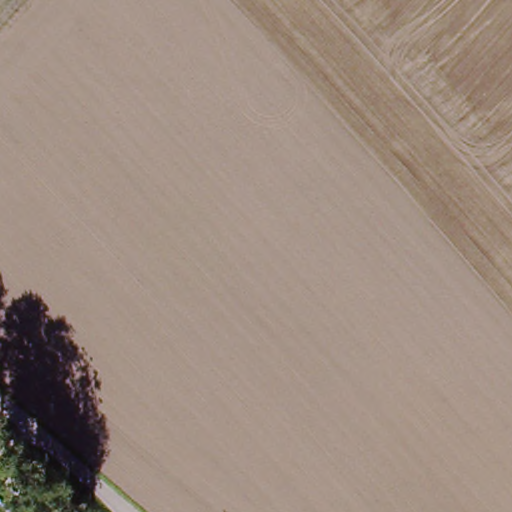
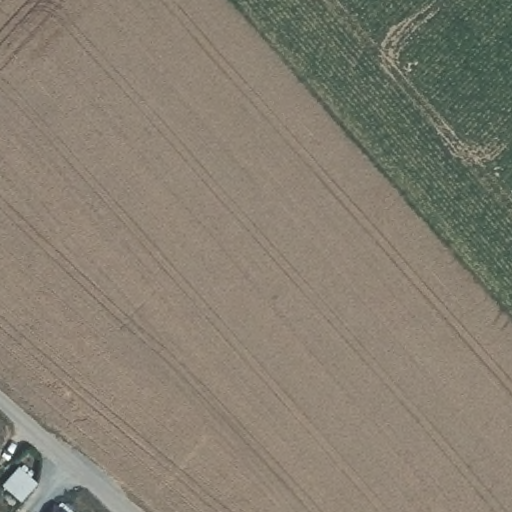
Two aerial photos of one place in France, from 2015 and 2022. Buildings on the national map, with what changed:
unchanged [(55,507),(60,512),(50,512),(55,507)]

